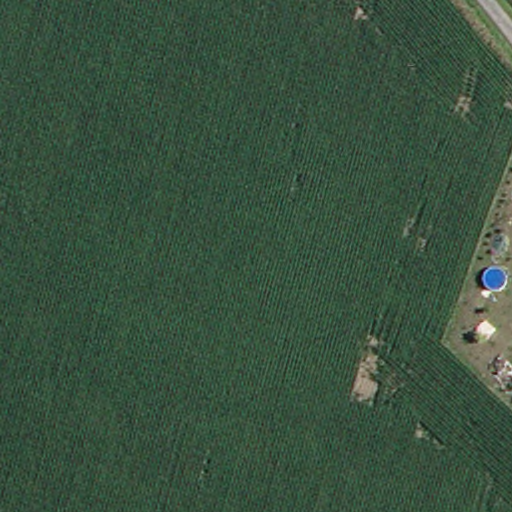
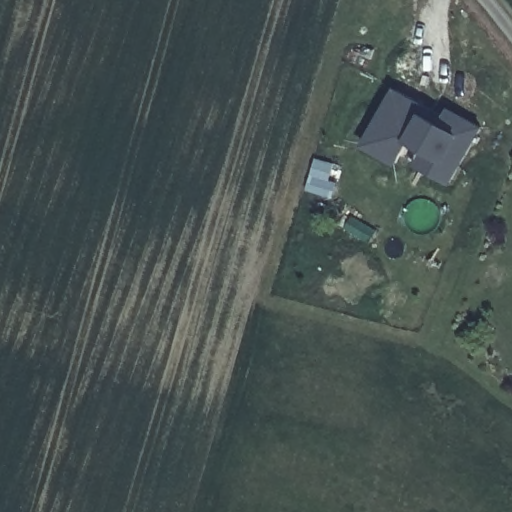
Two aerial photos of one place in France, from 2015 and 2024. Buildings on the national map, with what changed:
new [(402,151),(397,160),(368,143),(398,92),(427,109),(424,114),(439,124),(447,111),(476,128),(455,164),(447,178),(402,151)]

